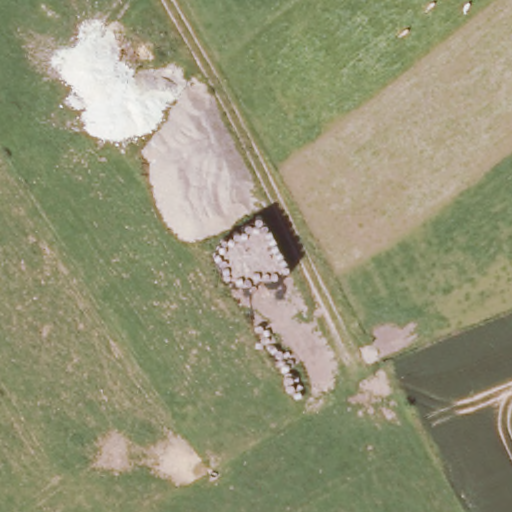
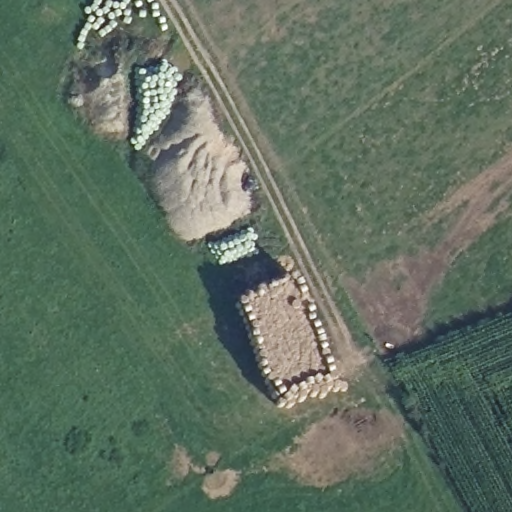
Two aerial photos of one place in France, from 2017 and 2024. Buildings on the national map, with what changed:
[]

